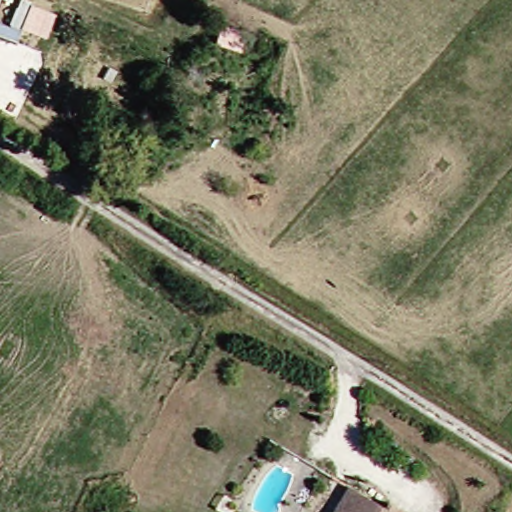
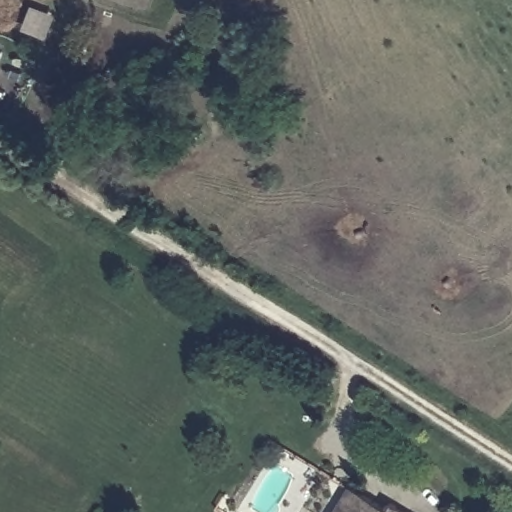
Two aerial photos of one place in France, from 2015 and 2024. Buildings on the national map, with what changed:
unchanged [(349,487),(383,505),(386,500),(406,512),(335,512),(349,487)]

